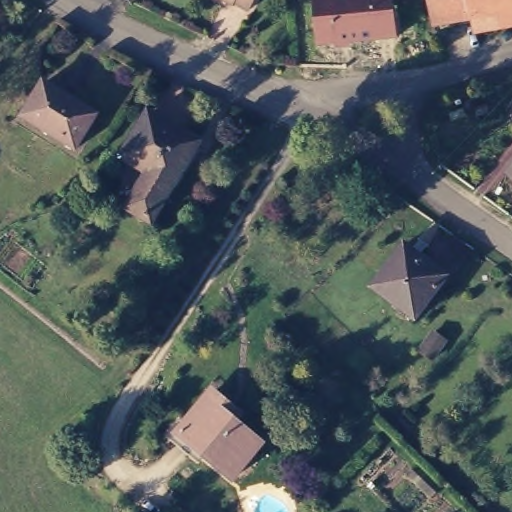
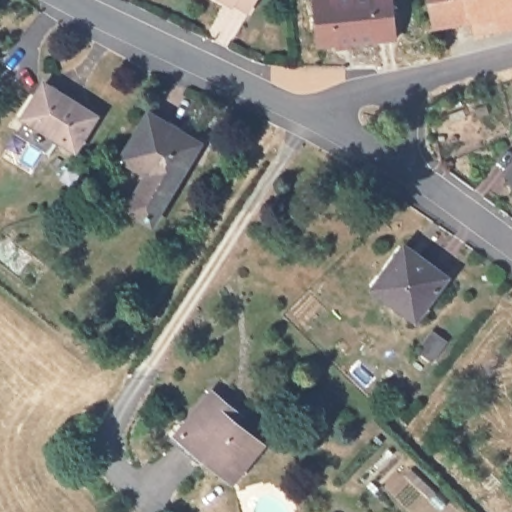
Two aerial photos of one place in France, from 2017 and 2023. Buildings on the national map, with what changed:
unchanged [(236,0),(235,3),(230,0),(256,0),(250,9),(236,0)]
unchanged [(317,49),(315,0),(394,0),(398,42),(317,49)]
unchanged [(442,0),(512,0),(512,19),(446,30),(442,0)]
unchanged [(22,115),(41,81),(89,107),(96,111),(76,144),(65,137),(22,115)]
unchanged [(138,202),(150,176),(122,162),(132,141),(145,117),(175,132),(195,142),(181,167),(161,210),(156,222),(133,212),(138,202)]
unchanged [(512,165),(512,173),(508,170),(512,165)]
unchanged [(448,282),(415,324),(372,290),(405,249),(448,282)]
unchanged [(178,450),(167,441),(186,420),(193,426),(217,398),(236,415),(245,422),(238,431),(265,453),(239,485),(186,441),(178,450)]

